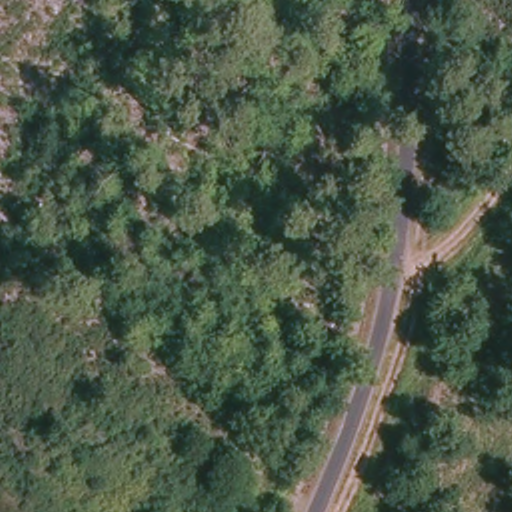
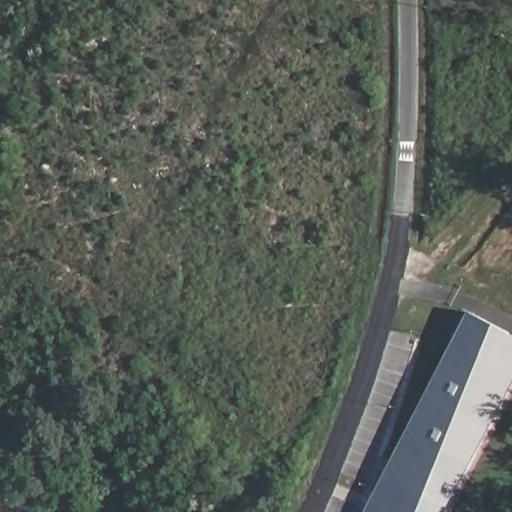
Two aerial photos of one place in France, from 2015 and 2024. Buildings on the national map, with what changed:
new [(448,512),(368,512),(471,312),(512,334),(512,389),(448,512)]

